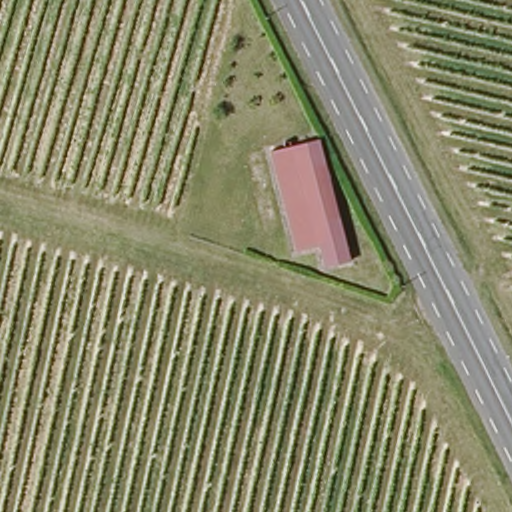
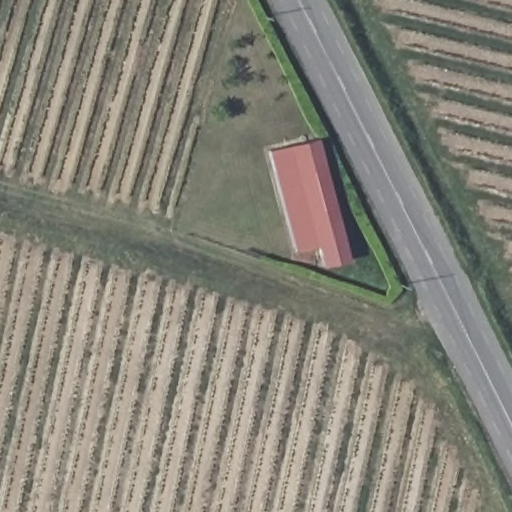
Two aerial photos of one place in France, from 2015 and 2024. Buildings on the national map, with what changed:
unchanged [(313,141),(343,263),(322,268),(317,246),(292,252),(268,153),(313,141)]

